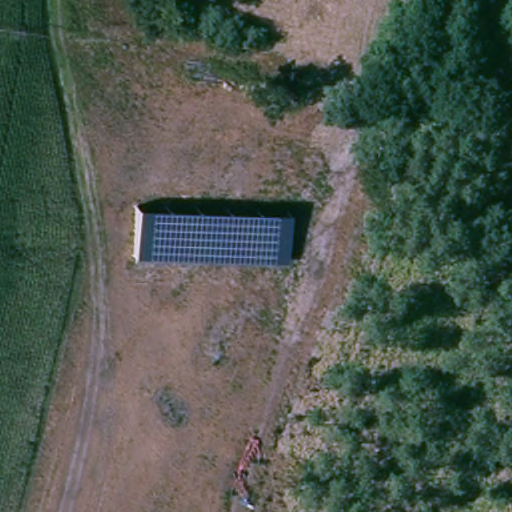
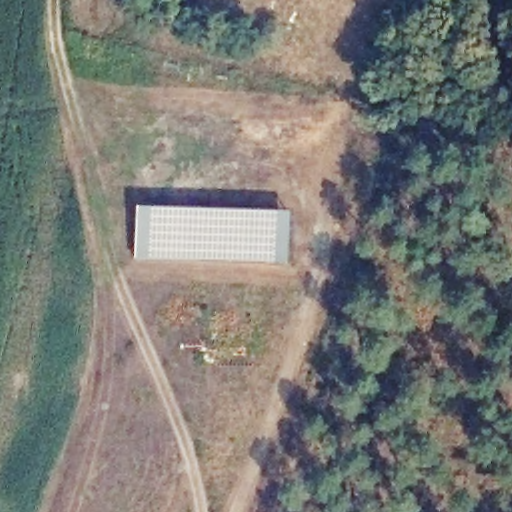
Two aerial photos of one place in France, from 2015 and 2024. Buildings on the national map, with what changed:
unchanged [(135,204),(288,210),(287,261),(133,258),(135,204)]

